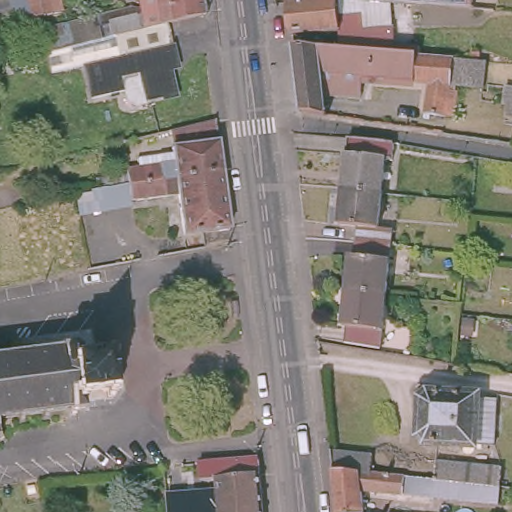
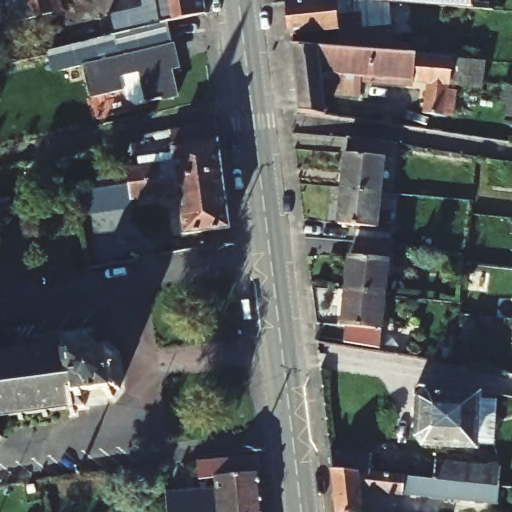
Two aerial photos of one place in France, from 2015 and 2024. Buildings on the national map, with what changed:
unchanged [(37,16),(11,23),(10,19),(0,22),(0,0),(57,0),(60,10),(37,16)]
unchanged [(89,96),(82,64),(118,54),(118,50),(43,69),(42,56),(46,55),(45,50),(39,28),(113,9),(136,4),(135,0),(201,0),(202,12),(165,21),(166,25),(173,59),(167,60),(174,93),(145,99),(129,103),(122,99),(121,89),(89,96)]
unchanged [(360,11),(362,30),(392,28),(395,53),(355,49),(340,48),(339,30),(291,34),(288,3),(288,0),(337,0),(338,14),(360,11)]
unchanged [(452,7),(407,4),(380,2),(379,2),(379,0),(466,0),(465,8),(452,7)]
unchanged [(453,117),(447,116),(424,114),(427,83),(322,74),(325,94),(327,116),(300,112),(298,95),(292,44),(340,48),(355,49),(395,53),(413,54),(428,55),(430,55),(455,57),(454,59),(486,62),(483,87),(450,84),(450,90),(457,90),(453,117)]
unchanged [(512,86),(512,125),(504,124),(507,104),(502,103),(505,85),(512,86)]
unchanged [(187,244),(180,202),(132,209),(133,214),(82,221),(80,204),(130,194),(98,199),(98,187),(128,182),(128,177),(140,174),(140,166),(175,161),(173,139),(217,128),(224,180),(230,238),(187,244)]
unchanged [(343,154),(388,158),(387,174),(380,173),(376,208),(338,204),(343,154)]
unchanged [(372,243),(387,244),(385,259),(350,257),(352,240),(335,239),(338,204),(376,208),(372,243)]
unchanged [(385,259),(380,309),(342,305),(345,271),(349,271),(350,257),(385,259)]
unchanged [(375,363),(340,358),(342,342),(338,341),(342,305),(380,309),(375,363)]
unchanged [(7,353),(25,351),(24,344),(32,343),(32,346),(57,343),(57,346),(62,346),(69,352),(70,358),(70,366),(74,394),(75,406),(65,407),(65,412),(40,415),(40,417),(32,418),(32,411),(15,413),(15,420),(7,421),(6,414),(0,415),(0,347),(7,347),(7,353)]
unchanged [(92,355),(92,348),(99,348),(100,354),(107,353),(107,360),(100,361),(103,382),(110,381),(110,389),(104,389),(105,397),(98,398),(97,391),(74,394),(70,366),(70,358),(92,355)]
unchanged [(416,386),(420,390),(420,393),(467,396),(467,399),(486,399),(485,443),(465,443),(465,446),(417,444),(410,436),(412,400),(408,399),(405,397),(405,389),(408,386),(416,386)]
unchanged [(495,488),(493,504),(357,491),(358,512),(332,512),(327,471),(325,451),(367,454),(365,474),(430,481),(495,488)]
unchanged [(262,512),(169,512),(168,502),(185,501),(185,512),(219,509),(217,478),(200,478),(200,462),(258,457),(262,512)]
unchanged [(430,481),(432,463),(497,469),(495,488),(430,481)]

